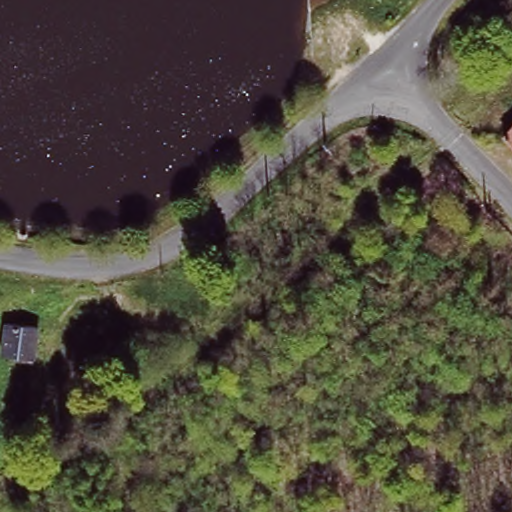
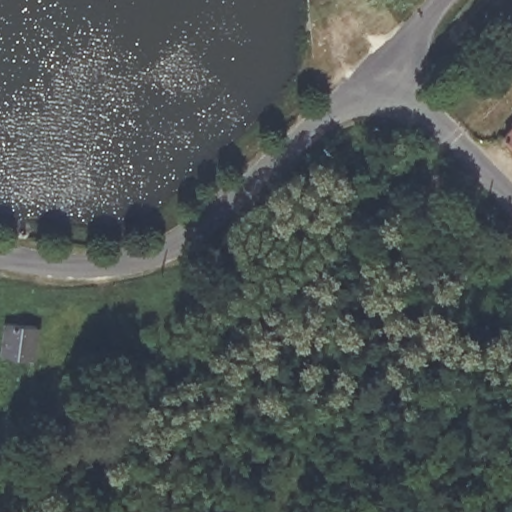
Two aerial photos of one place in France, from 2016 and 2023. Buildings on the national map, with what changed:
unchanged [(512,140),(503,132),(512,123),(512,140)]
unchanged [(42,321),(37,360),(0,356),(0,342),(2,316),(42,321)]

